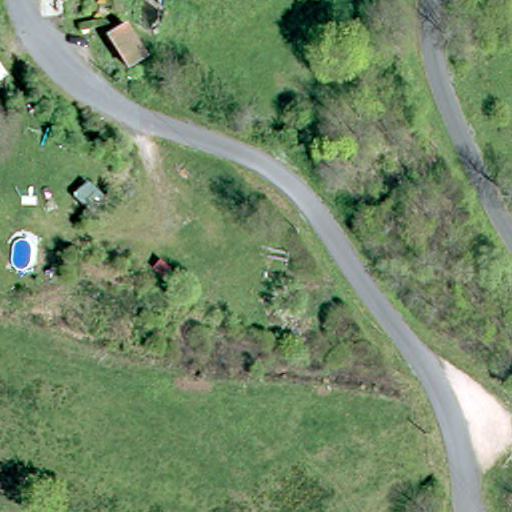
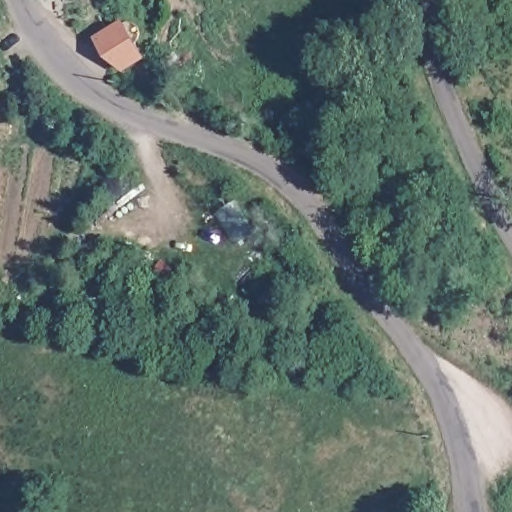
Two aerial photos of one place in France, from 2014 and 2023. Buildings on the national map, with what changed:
unchanged [(125,24),(145,58),(127,67),(107,34),(125,24)]

